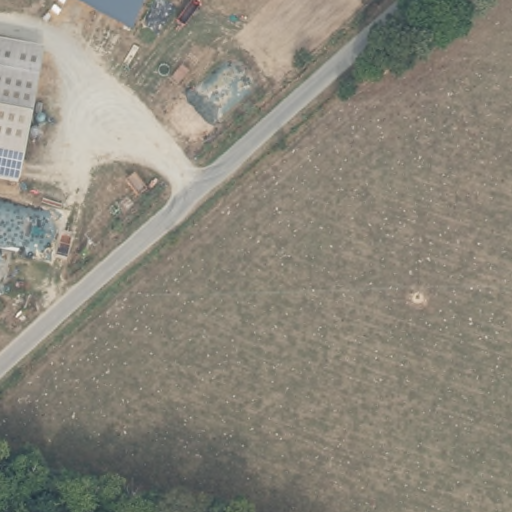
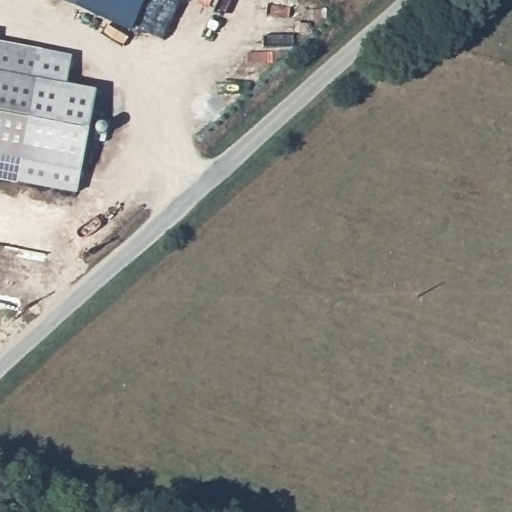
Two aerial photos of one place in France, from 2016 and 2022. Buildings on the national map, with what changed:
unchanged [(128,29),(61,0),(143,0),(128,29)]
unchanged [(17,179),(0,176),(0,43),(42,51),(17,179)]
new [(42,51),(71,57),(66,85),(96,91),(77,190),(17,179),(42,51)]

